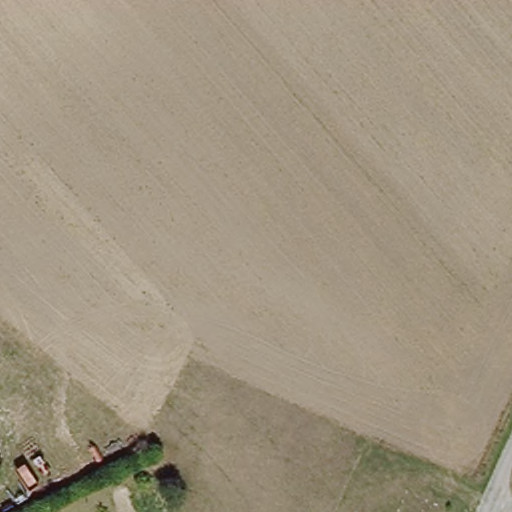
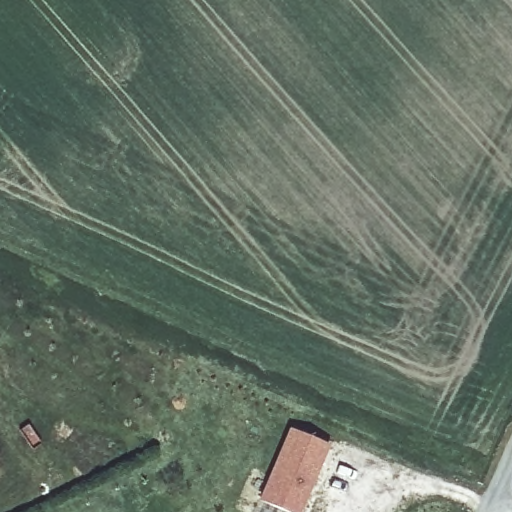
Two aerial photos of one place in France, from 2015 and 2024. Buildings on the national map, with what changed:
new [(288,428),(327,445),(299,512),(287,512),(258,499),(288,428)]

